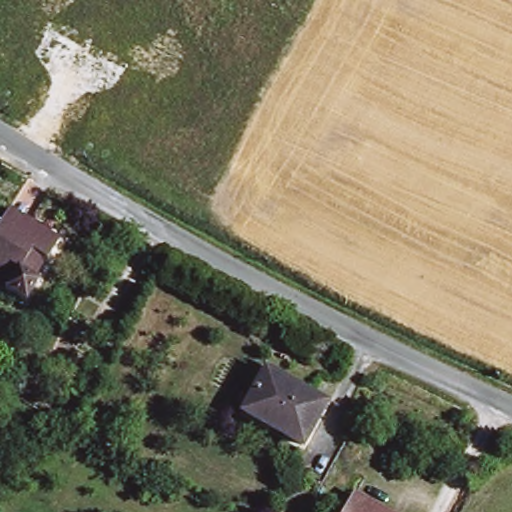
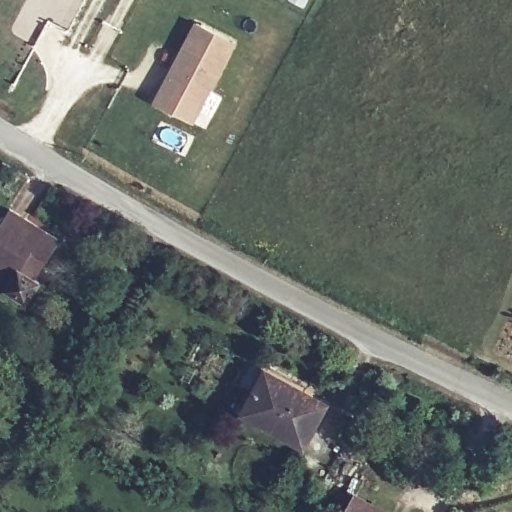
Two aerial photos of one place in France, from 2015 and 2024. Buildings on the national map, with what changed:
new [(207,130),(180,115),(157,103),(199,21),(236,42),(211,89),(224,96),(207,130)]
unchanged [(5,202),(62,232),(47,261),(40,276),(31,294),(12,283),(0,277),(0,212),(5,202)]
unchanged [(242,405),(261,364),(322,395),(301,435),(242,405)]
unchanged [(354,490),(397,512),(341,512),(354,490)]

